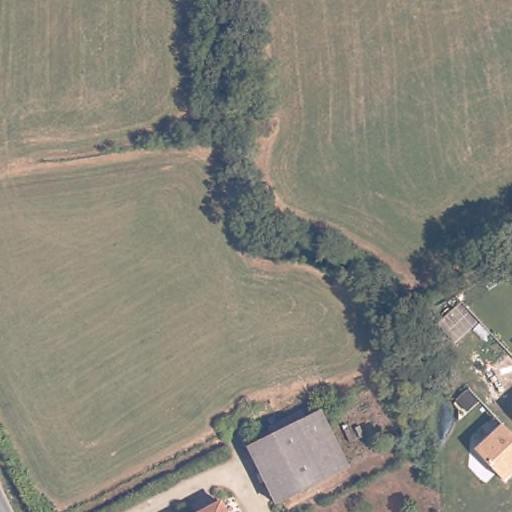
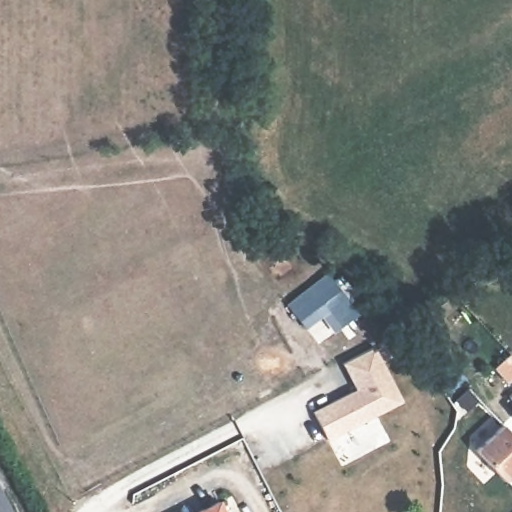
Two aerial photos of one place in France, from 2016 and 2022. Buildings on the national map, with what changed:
new [(327,274),(346,298),(348,296),(362,315),(335,336),(322,320),(307,332),(288,305),(327,274)]
new [(404,402),(328,441),(312,411),(355,389),(342,364),(376,347),(404,402)]
demolished [(247,448),(319,413),(345,468),(274,503),(247,448)]
unchanged [(512,473),(505,481),(477,450),(503,425),(512,434),(512,473)]
unchanged [(223,512),(201,512),(219,503),(223,512)]

